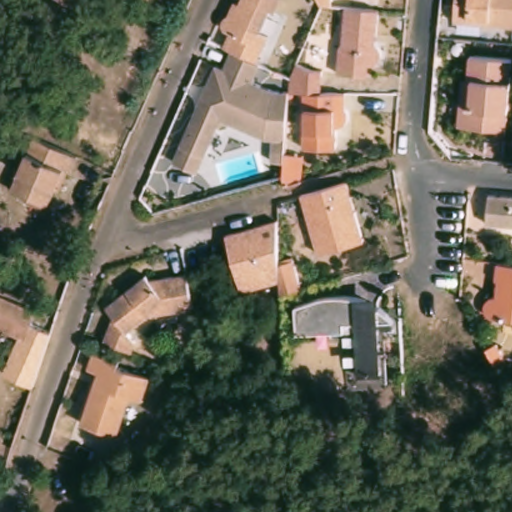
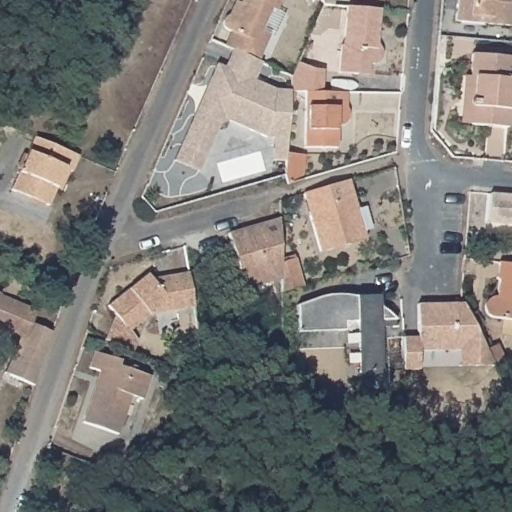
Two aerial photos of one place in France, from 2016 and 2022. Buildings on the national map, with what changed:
unchanged [(230,14),(234,15),(240,0),(277,0),(273,11),(269,9),(260,30),(269,34),(257,61),(246,56),(227,49),(235,31),(227,27),(224,25),(222,21),(224,16),(226,15),(230,14)]
unchanged [(455,0),(512,0),(512,25),(454,21),(455,0)]
unchanged [(360,75),(341,73),(343,45),(346,45),(349,6),(383,10),(380,44),(383,49),(385,53),(385,58),(382,61),(378,64),(371,63),(370,75),(360,75)]
unchanged [(465,72),(470,73),(472,50),(511,53),(512,53),(512,88),(509,124),(471,121),(460,120),(465,76),(465,72)]
unchanged [(219,66),(227,71),(236,52),(246,56),(257,61),(263,65),(256,85),(275,93),(292,94),(287,151),(286,163),(275,161),(277,143),(267,141),(224,121),(204,174),(177,163),(219,66)]
unchanged [(350,89),(350,101),(350,106),(351,110),(350,115),(348,118),(345,121),(340,123),(339,144),(306,144),(310,88),(293,87),(295,71),(302,59),(316,66),(325,66),(324,88),(330,89),(350,89)]
unchanged [(58,186),(50,203),(15,187),(39,133),(81,152),(74,169),(71,168),(62,188),(58,186)]
unchanged [(306,152),(305,175),(289,180),(285,170),(287,151),(306,152)]
unchanged [(350,180),(367,240),(322,253),(305,193),(350,180)]
unchanged [(512,198),(512,228),(491,225),(491,197),(512,198)]
unchanged [(305,287),(285,293),(284,279),(245,290),(231,234),(282,220),(283,264),(298,259),(305,287)]
unchanged [(502,277),(500,276),(500,275),(502,258),(512,259),(512,315),(499,314),(495,312),(492,309),(490,304),(491,300),(492,296),(496,294),(500,293),(502,277)]
unchanged [(155,281),(192,276),(197,308),(181,311),(153,315),(134,331),(141,341),(137,352),(110,340),(119,318),(110,307),(150,275),(155,281)]
unchanged [(358,294),(368,295),(376,297),(385,302),(390,307),(393,312),(397,319),(405,319),(406,338),(383,339),(383,372),(360,373),(360,321),(347,321),(347,330),(300,331),(300,304),(358,294)]
unchanged [(0,334),(0,295),(39,312),(26,340),(11,333),(10,338),(0,334)]
new [(463,303),(486,349),(494,364),(460,366),(459,351),(420,351),(421,370),(404,370),(403,338),(406,338),(417,338),(416,304),(463,303)]
unchanged [(496,343),(505,359),(494,364),(486,349),(496,343)]
unchanged [(93,364),(99,347),(129,357),(126,364),(152,372),(145,394),(135,391),(120,430),(86,418),(103,367),(93,364)]

